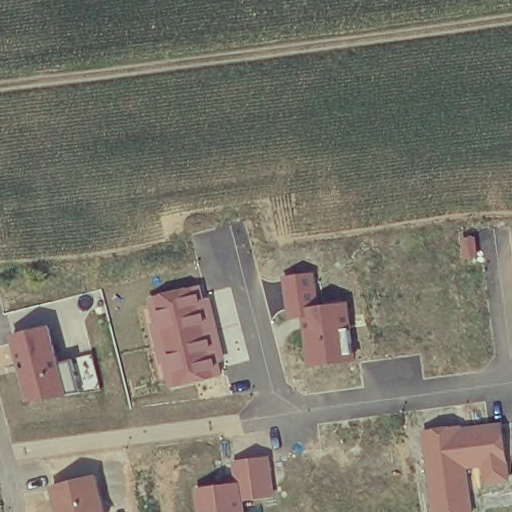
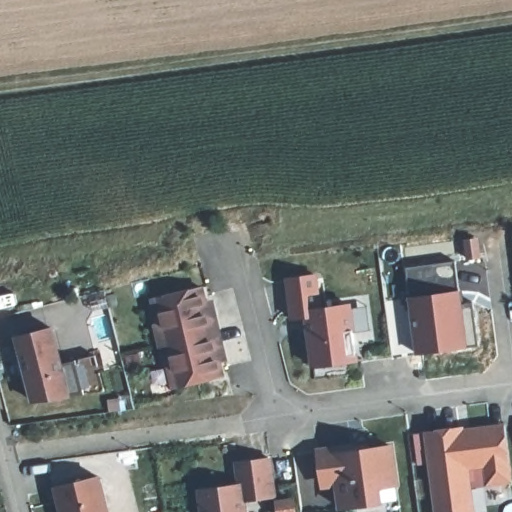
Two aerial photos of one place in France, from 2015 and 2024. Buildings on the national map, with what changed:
new [(454,261),(457,288),(462,287),(464,303),(471,303),(477,343),(468,345),(414,353),(407,298),(412,297),(405,268),(454,261)]
unchanged [(314,368),(306,319),(293,320),(288,277),(319,272),(324,306),(351,303),(361,362),(314,368)]
unchanged [(149,299),(204,285),(208,298),(213,297),(228,361),(223,363),(226,376),(173,389),(149,299)]
unchanged [(69,391),(28,400),(11,332),(55,324),(69,391)]
unchanged [(512,447),(512,478),(487,480),(486,465),(472,465),(477,512),(436,512),(427,429),(504,423),(507,447),(512,447)]
new [(399,485),(380,489),(382,502),(336,508),(333,487),(320,488),(316,448),(339,445),(346,450),(393,444),(399,485)]
unchanged [(246,493),(248,512),(201,512),(198,483),(235,480),(233,462),(276,456),(278,490),(246,493)]
unchanged [(102,473),(111,512),(60,512),(54,486),(102,473)]

